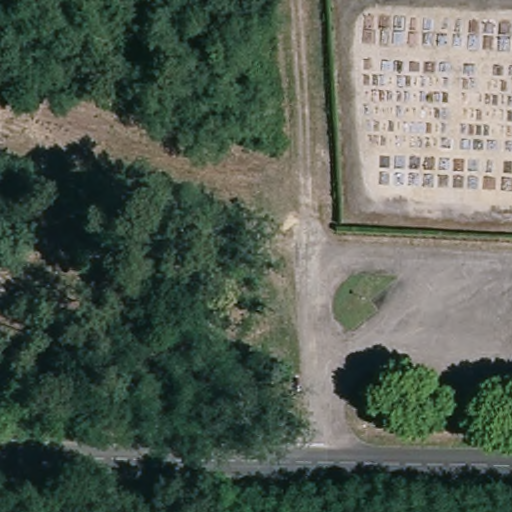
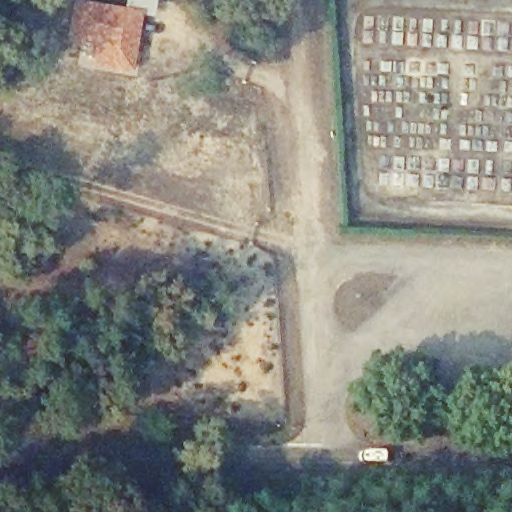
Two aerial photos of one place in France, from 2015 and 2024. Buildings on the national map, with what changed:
new [(70,0),(85,0),(122,5),(124,0),(155,0),(152,15),(142,14),(128,74),(86,65),(89,50),(63,44),(70,0)]

